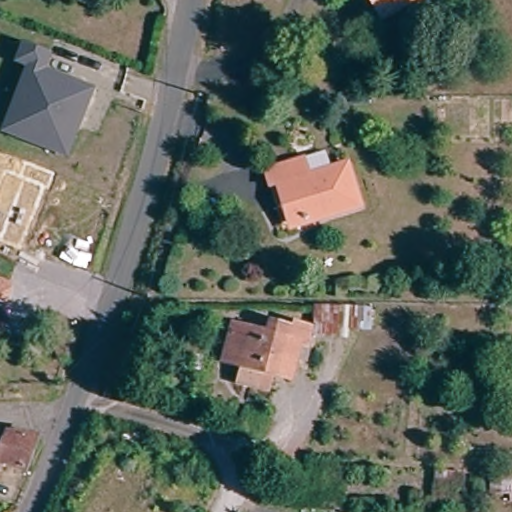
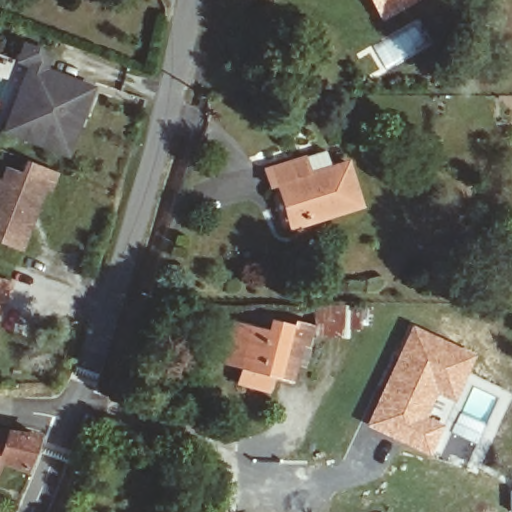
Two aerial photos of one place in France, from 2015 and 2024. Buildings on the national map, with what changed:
unchanged [(377,0),(410,0),(387,16),(380,5),(377,0)]
unchanged [(15,63),(22,40),(52,52),(47,68),(95,86),(69,158),(0,132),(0,131),(25,67),(15,63)]
unchanged [(364,208),(326,218),(325,213),(296,221),(285,181),(276,183),(270,163),(312,152),(317,172),(352,163),(364,208)]
new [(0,243),(0,181),(6,166),(21,172),(26,161),(59,174),(52,193),(47,191),(22,250),(0,243)]
unchanged [(14,281),(7,302),(0,300),(0,277),(14,281)]
unchanged [(371,302),(369,322),(359,321),(358,331),(322,327),(325,299),(371,302)]
unchanged [(246,374),(252,361),(227,351),(239,317),(274,330),(277,319),(298,326),(300,322),(321,329),(317,343),(310,364),(298,360),(293,376),(283,373),(279,386),(246,374)]
new [(379,388),(411,323),(476,353),(455,403),(429,456),(363,425),(379,388)]
unchanged [(29,467),(0,457),(0,430),(40,435),(29,467)]
unchanged [(495,471),(512,471),(512,494),(495,494),(495,471)]
unchanged [(462,473),(462,488),(431,487),(431,472),(462,473)]
unchanged [(306,480),(344,481),(343,510),(305,509),(306,480)]

